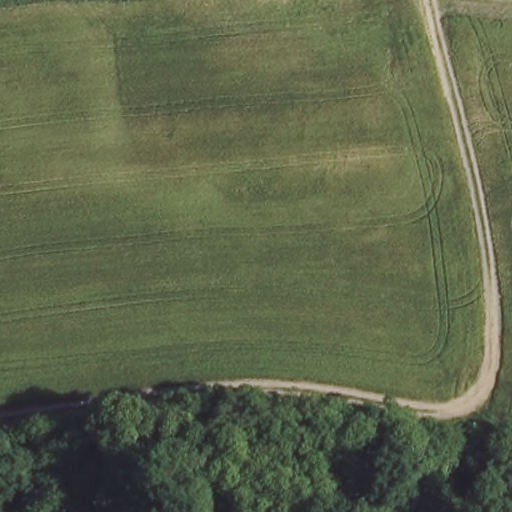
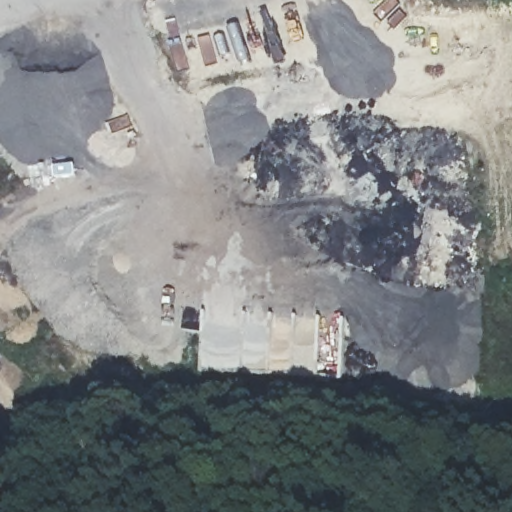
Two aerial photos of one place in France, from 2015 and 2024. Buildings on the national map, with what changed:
[]

